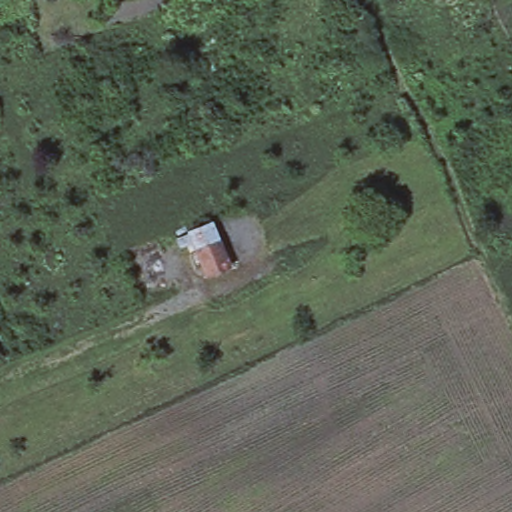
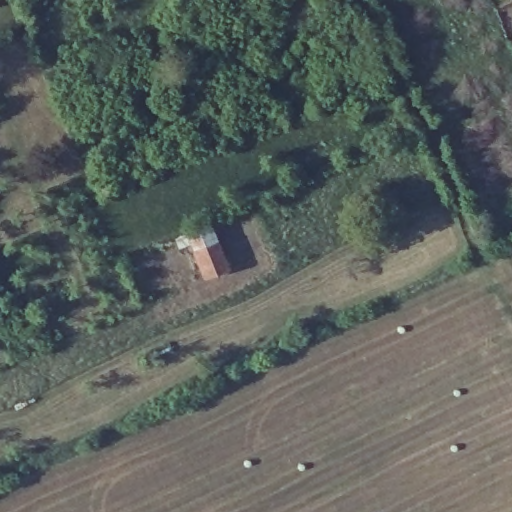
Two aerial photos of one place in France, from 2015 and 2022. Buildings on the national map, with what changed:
unchanged [(187,232),(210,220),(221,242),(233,237),(243,261),(208,279),(187,232)]

